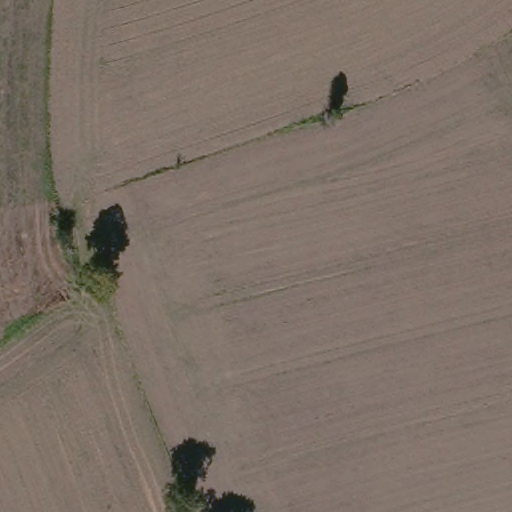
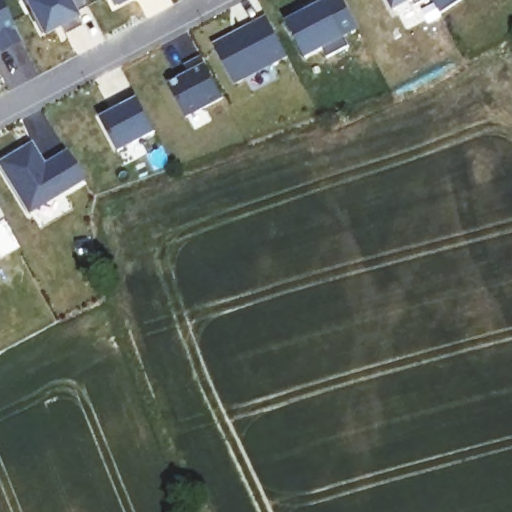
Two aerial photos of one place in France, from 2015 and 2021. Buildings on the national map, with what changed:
new [(90,8),(76,16),(42,34),(22,0),(85,0),(90,8)]
new [(360,30),(345,39),(350,48),(330,60),(324,50),(306,60),(284,20),(323,1),(325,4),(332,0),(342,0),(360,30)]
new [(415,6),(412,0),(394,10),(389,0),(426,0),(415,6)]
new [(0,52),(0,2),(20,41),(0,52)]
new [(269,16),(289,55),(235,82),(215,43),(269,16)]
new [(170,86),(189,77),(185,68),(202,59),(224,99),(186,117),(170,86)]
new [(124,105),(120,98),(135,91),(156,130),(119,149),(101,116),(124,105)]
new [(51,155),(66,146),(84,176),(27,211),(0,165),(0,157),(30,138),(44,160),(51,155)]
new [(0,216),(0,209),(3,215),(0,216)]

